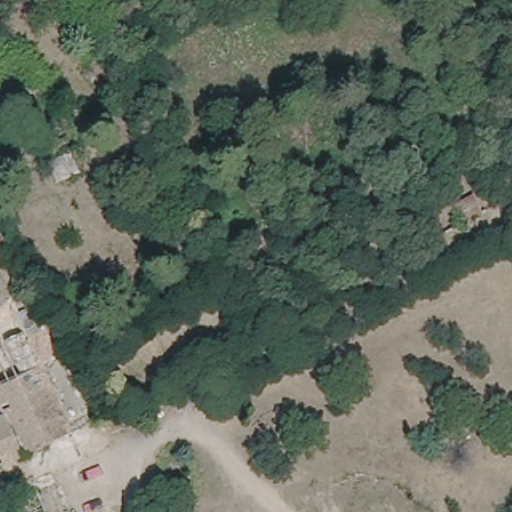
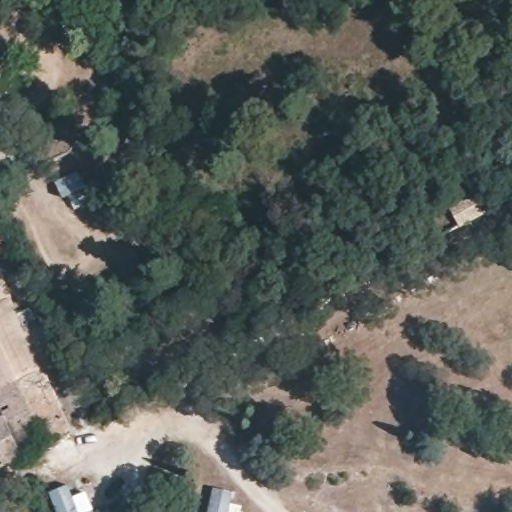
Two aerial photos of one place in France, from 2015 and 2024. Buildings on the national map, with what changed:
unchanged [(482,215),(458,227),(450,207),(473,196),(482,215)]
unchanged [(0,267),(0,221),(17,257),(0,267)]
unchanged [(35,293),(68,362),(49,374),(74,430),(0,465),(0,414),(3,413),(0,406),(0,269),(17,302),(35,293)]

